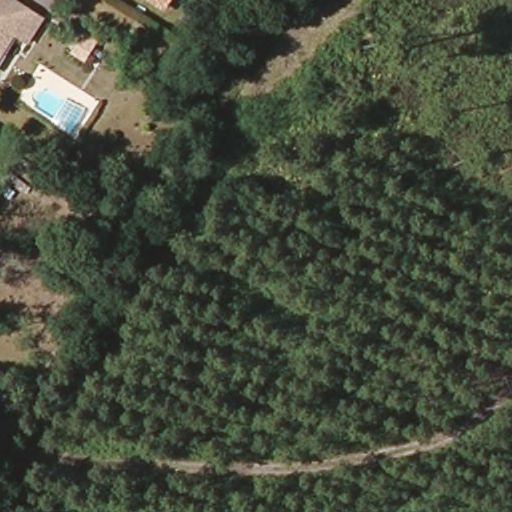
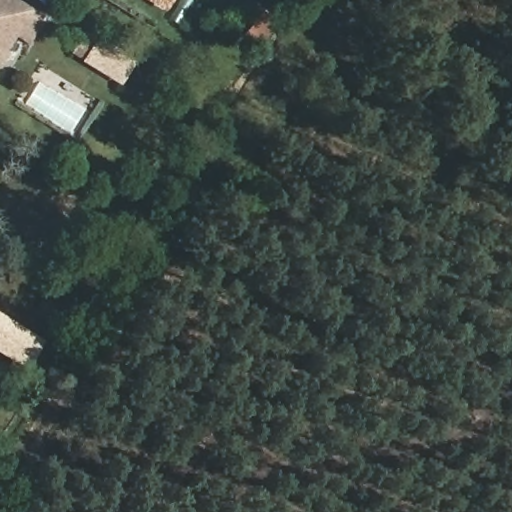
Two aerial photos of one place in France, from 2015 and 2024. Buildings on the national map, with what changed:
unchanged [(26,48),(14,39),(0,57),(0,0),(7,0),(42,26),(26,48)]
unchanged [(146,0),(173,0),(165,12),(146,0)]
new [(0,355),(0,314),(44,341),(27,371),(0,355)]

